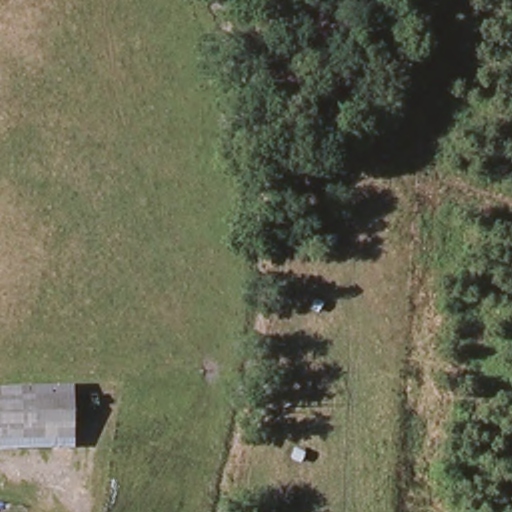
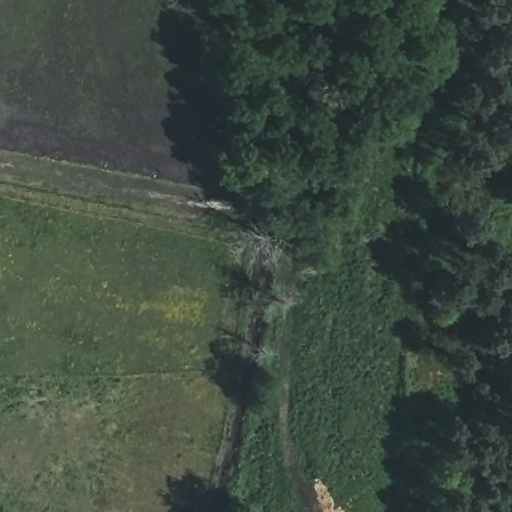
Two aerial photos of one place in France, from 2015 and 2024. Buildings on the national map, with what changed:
demolished [(0,451),(0,388),(74,386),(75,449),(0,451)]

